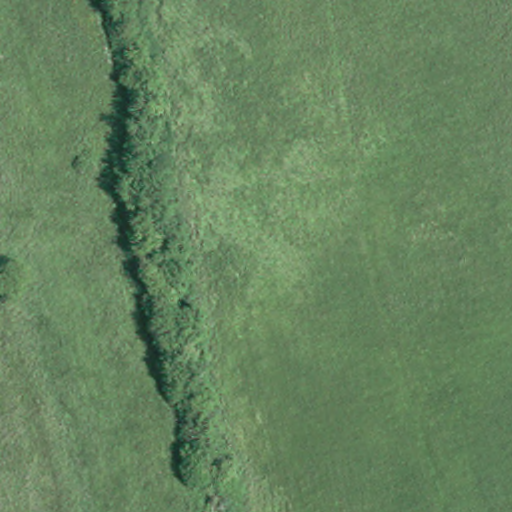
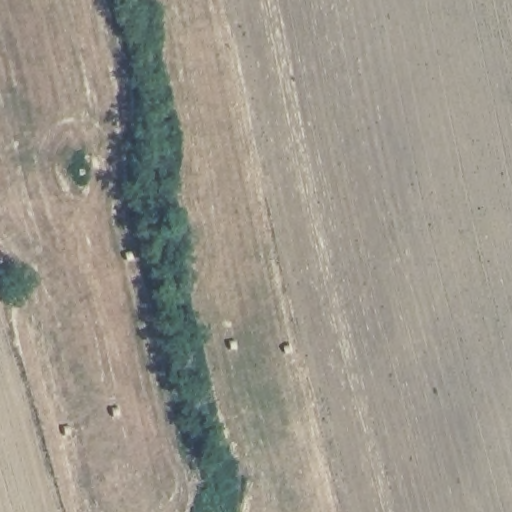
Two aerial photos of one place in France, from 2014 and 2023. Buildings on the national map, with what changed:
[]

